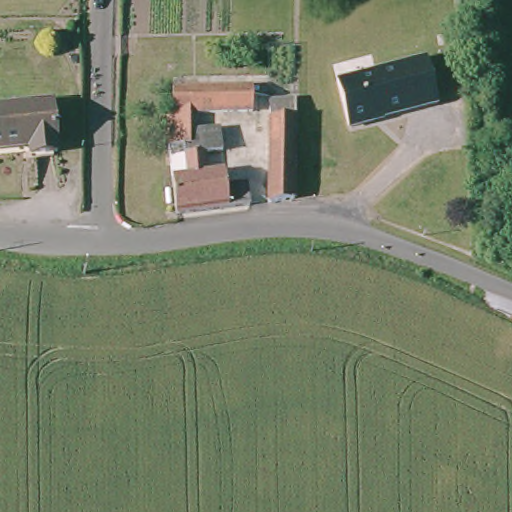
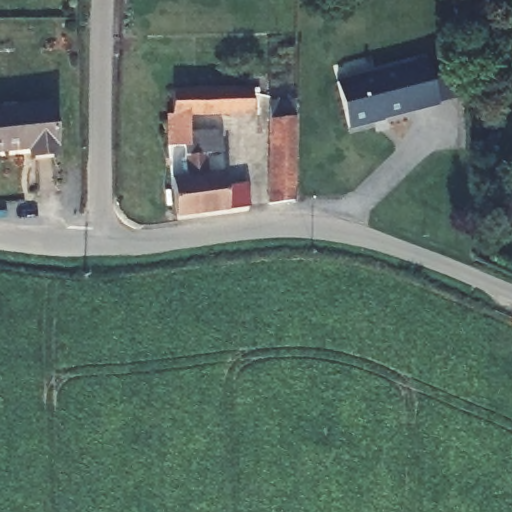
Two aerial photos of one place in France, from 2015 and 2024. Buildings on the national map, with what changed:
unchanged [(430,54),(440,102),(349,127),(339,79),(430,54)]
unchanged [(253,113),(190,113),(190,132),(221,131),(223,153),(207,154),(208,171),(226,169),(226,185),(250,183),(251,205),(177,213),(173,176),(188,174),(185,144),(164,145),(163,110),(169,110),(169,90),(177,89),(178,89),(246,87),(253,87),(253,113)]
unchanged [(305,100),(305,104),(305,124),(303,199),(303,203),(259,208),(262,102),(305,100)]
unchanged [(60,152),(30,156),(29,149),(0,153),(0,109),(53,102),(60,152)]

